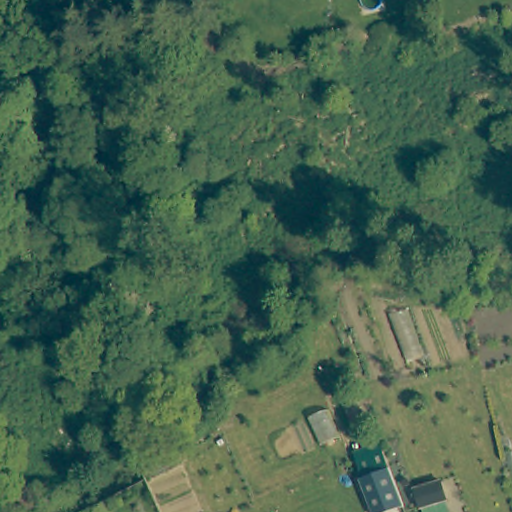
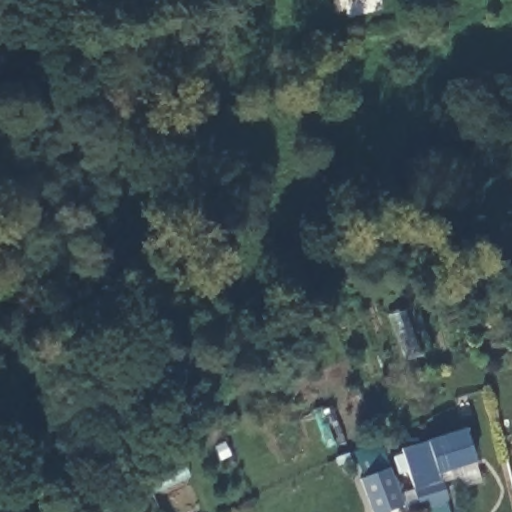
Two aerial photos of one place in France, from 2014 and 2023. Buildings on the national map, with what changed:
new [(428,440),(466,429),(476,461),(440,473),(442,480),(413,487),(402,449),(428,440)]
unchanged [(367,475),(357,454),(380,446),(389,467),(405,504),(384,512),(373,512),(362,478),(367,475)]
new [(450,512),(421,512),(413,487),(442,480),(450,512)]

